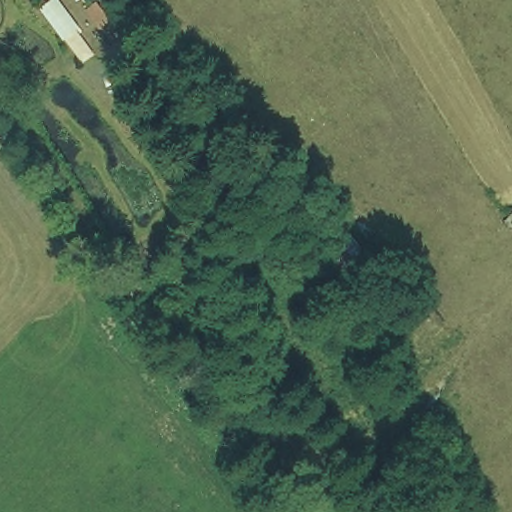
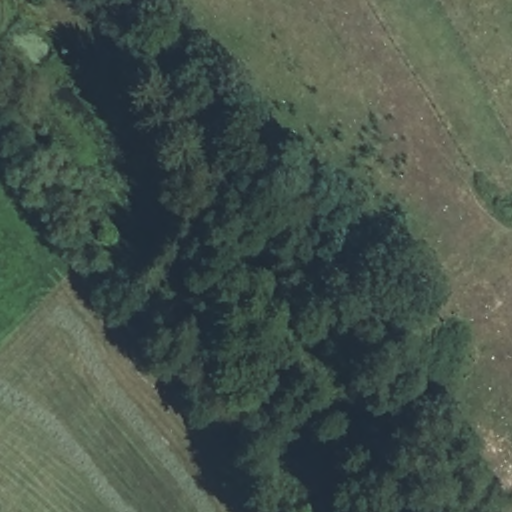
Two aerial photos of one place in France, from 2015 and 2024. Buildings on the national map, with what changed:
unchanged [(392,275),(359,297),(323,260),(366,235),(392,275)]

